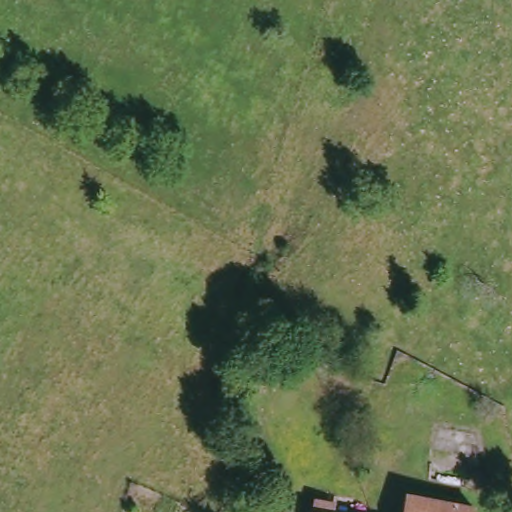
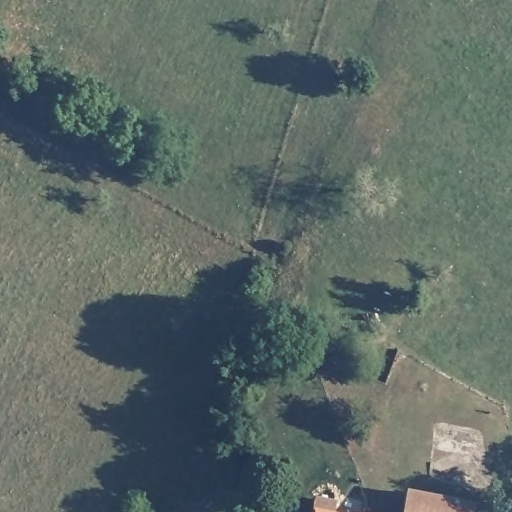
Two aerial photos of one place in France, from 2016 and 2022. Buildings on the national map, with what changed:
unchanged [(471,512),(404,512),(408,489),(472,501),(471,512)]

